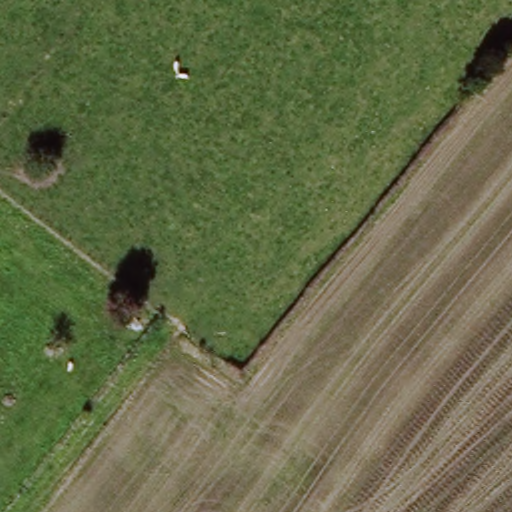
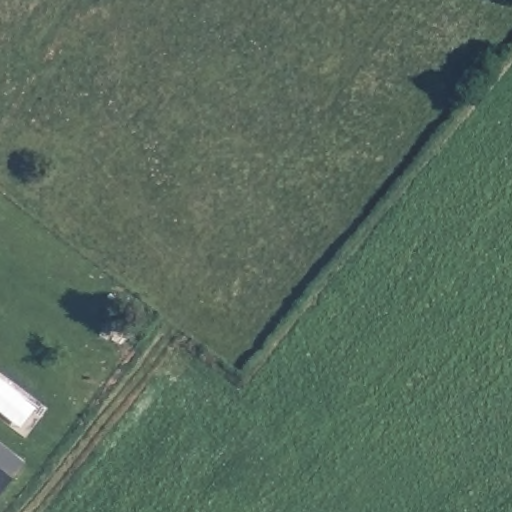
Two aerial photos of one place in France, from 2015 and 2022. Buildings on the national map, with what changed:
new [(24,466),(0,492),(0,446),(24,466)]

